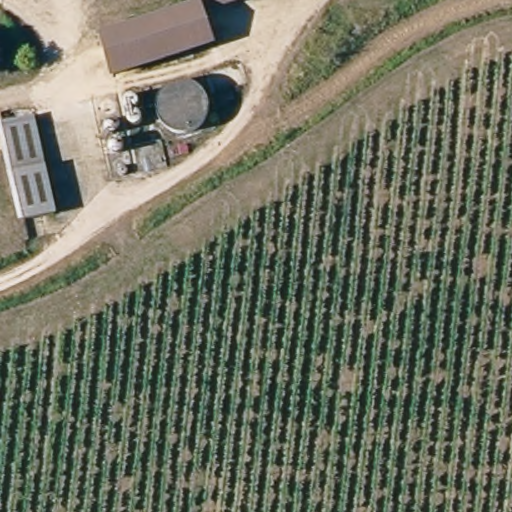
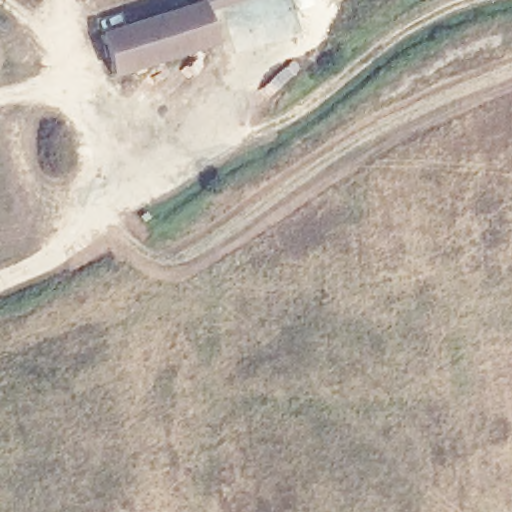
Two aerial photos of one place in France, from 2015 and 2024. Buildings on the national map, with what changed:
unchanged [(201,0),(204,9),(216,50),(116,80),(105,28),(196,0),(201,0)]
unchanged [(201,0),(237,0),(204,9),(201,0)]
demolished [(57,208),(24,215),(2,122),(37,115),(57,208)]

